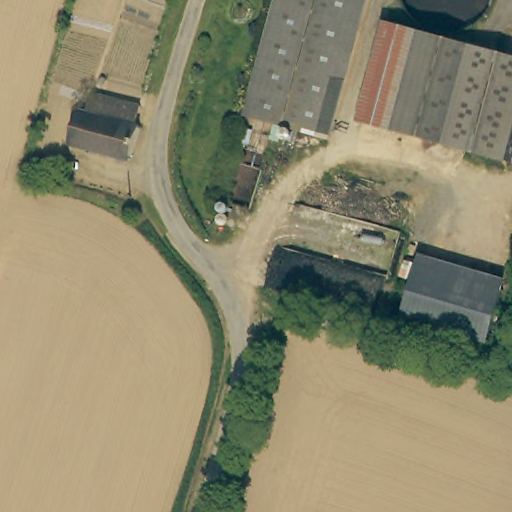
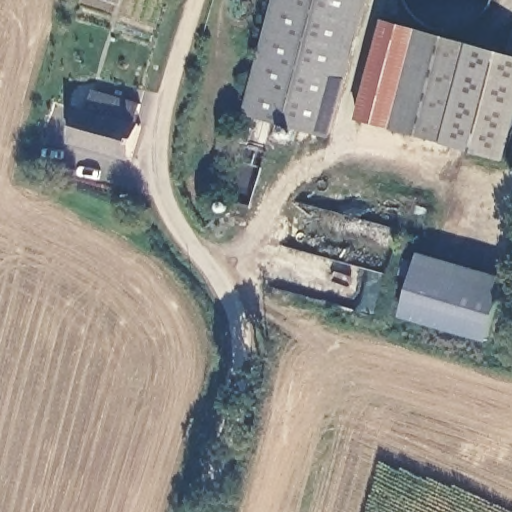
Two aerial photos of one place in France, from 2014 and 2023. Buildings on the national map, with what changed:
unchanged [(248,122),(278,0),(360,0),(324,141),(248,122)]
unchanged [(512,57),(512,124),(503,159),(354,121),(379,23),(512,57)]
unchanged [(129,159),(66,137),(76,104),(81,106),(87,89),(137,108),(131,124),(139,127),(129,159)]
unchanged [(423,255),(511,285),(494,345),(400,315),(423,255)]

